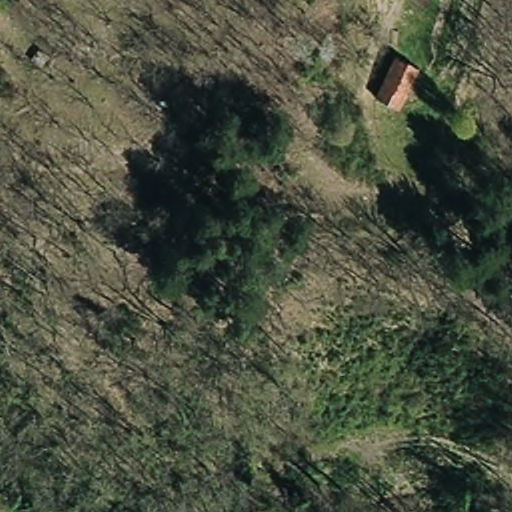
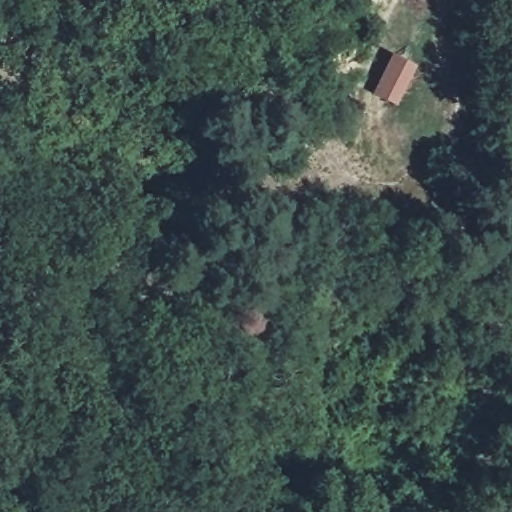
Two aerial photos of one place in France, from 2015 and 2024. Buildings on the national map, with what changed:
unchanged [(401,51),(421,62),(403,103),(375,91),(401,51)]

